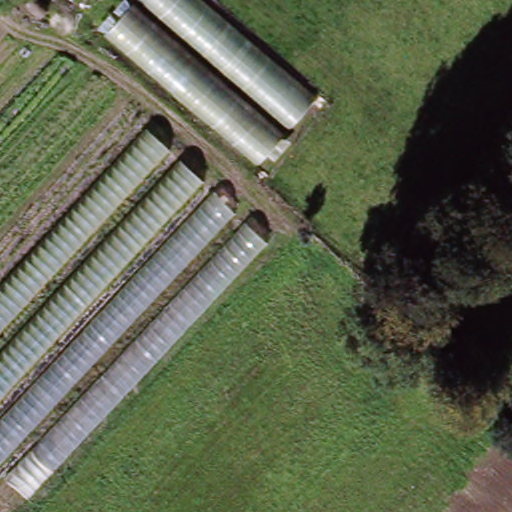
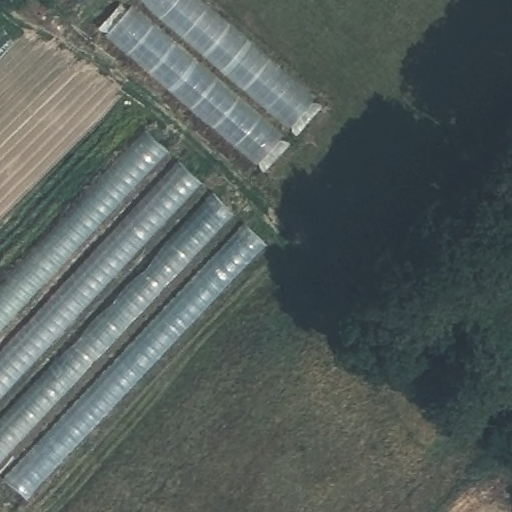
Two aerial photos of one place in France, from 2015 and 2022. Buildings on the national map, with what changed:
unchanged [(321,110),(265,170),(98,24),(121,0),(196,0),(321,110)]
unchanged [(0,282),(145,125),(170,147),(0,327),(0,282)]
unchanged [(0,395),(0,351),(180,158),(203,179),(0,395)]
unchanged [(234,211),(0,461),(0,416),(213,190),(234,211)]
unchanged [(267,240),(25,497),(5,477),(247,221),(267,240)]

